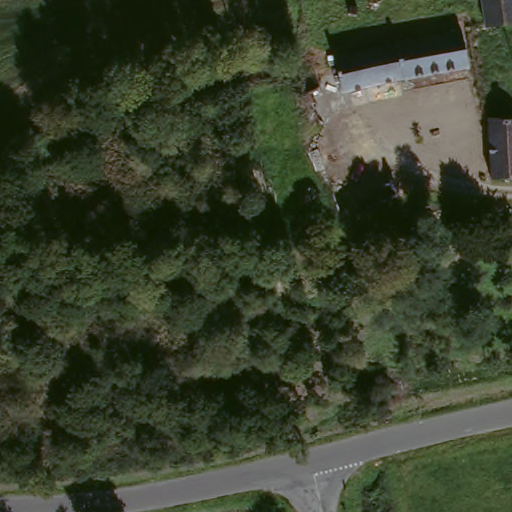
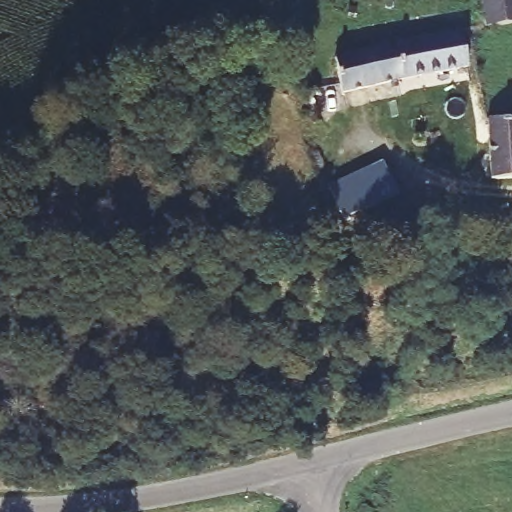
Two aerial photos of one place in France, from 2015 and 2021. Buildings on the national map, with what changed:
unchanged [(489,27),(486,0),(512,0),(512,25),(489,27)]
unchanged [(466,27),(473,61),(347,89),(339,57),(395,42),(466,27)]
demolished [(330,73),(344,105),(329,112),(315,81),(330,73)]
unchanged [(498,175),(497,117),(512,116),(512,175),(498,175)]
new [(328,185),(382,162),(395,195),(342,219),(328,185)]

